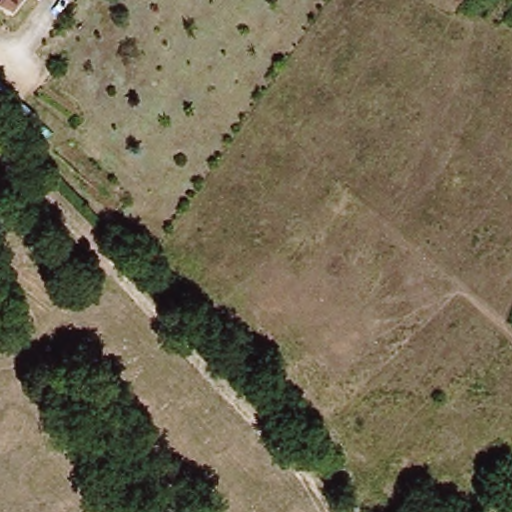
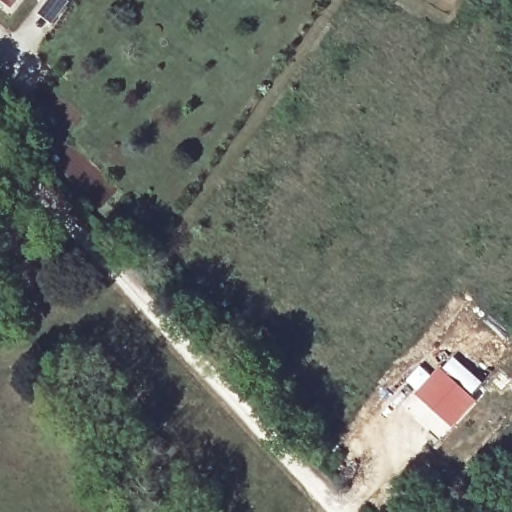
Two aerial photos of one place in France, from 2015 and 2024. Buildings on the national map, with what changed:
unchanged [(0,5),(0,0),(19,0),(9,12),(0,5)]
unchanged [(26,111),(7,130),(0,124),(0,87),(26,111)]
new [(438,369),(476,401),(452,425),(415,394),(438,369)]

